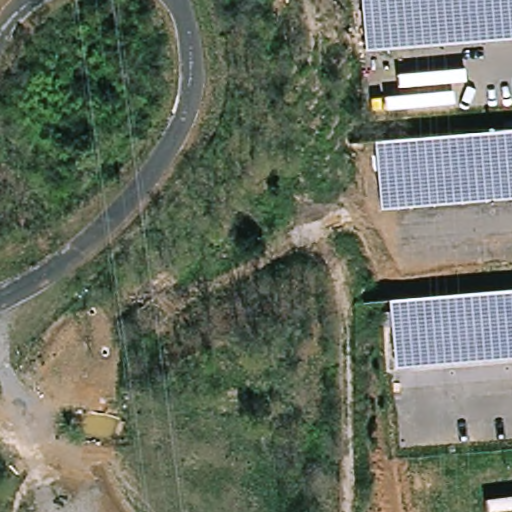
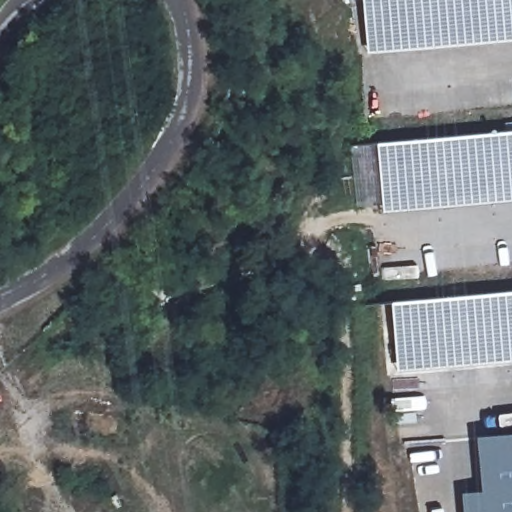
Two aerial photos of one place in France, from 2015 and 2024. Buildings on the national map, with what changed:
unchanged [(454,38),(369,46),(364,0),(512,0),(512,33),(454,38)]
unchanged [(447,49),(370,56),(369,46),(454,38),(512,33),(512,44),(447,49)]
unchanged [(512,131),(512,193),(385,205),(382,205),(377,155),(376,143),(379,143),(385,142),(512,131)]
unchanged [(385,212),(383,213),(382,205),(385,205),(512,193),(512,201),(385,212)]
unchanged [(400,365),(394,301),(512,290),(512,354),(400,365)]
unchanged [(401,373),(400,365),(512,354),(512,364),(401,373)]
new [(480,488),(476,435),(512,432),(512,512),(464,512),(463,491),(480,488)]

